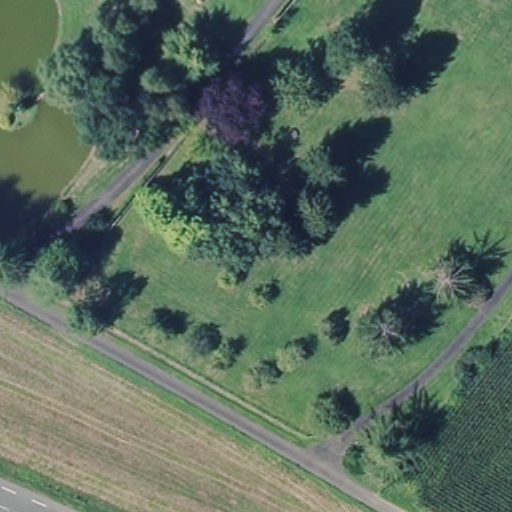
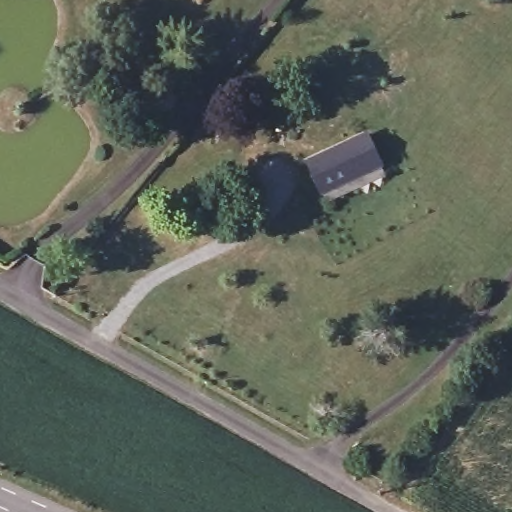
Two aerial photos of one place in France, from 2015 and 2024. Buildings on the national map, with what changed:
new [(327,198),(322,186),(321,187),(308,158),(365,131),(380,159),(378,159),(385,171),(327,198)]

